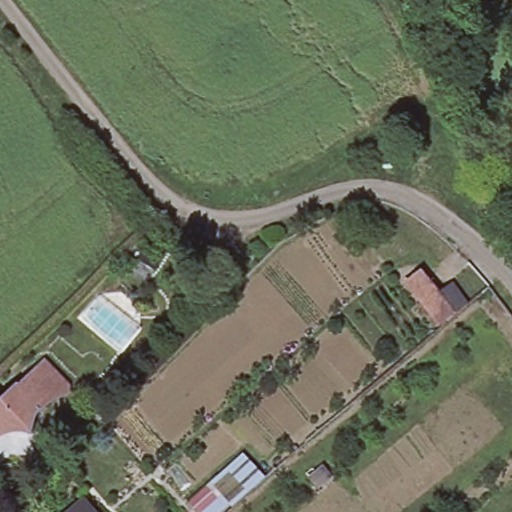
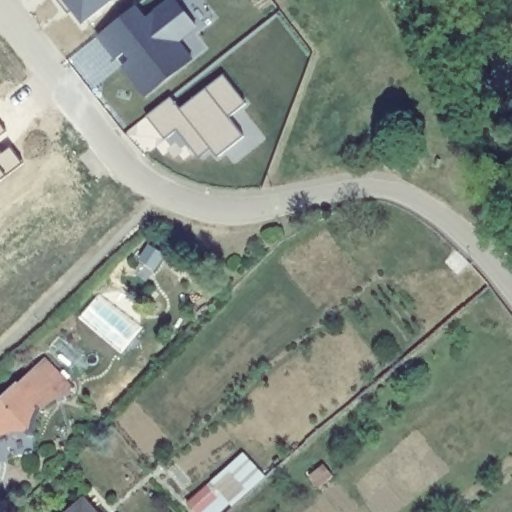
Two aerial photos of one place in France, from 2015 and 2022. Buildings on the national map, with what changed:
new [(84,24),(68,5),(64,8),(57,0),(115,0),(84,24)]
new [(135,6),(144,15),(165,0),(173,0),(195,26),(178,42),(193,59),(145,97),(121,68),(128,61),(122,52),(113,58),(96,37),(135,6)]
new [(171,97),(181,109),(224,75),(247,104),(230,118),(245,137),(218,158),(212,150),(204,156),(195,144),(191,147),(178,131),(166,140),(147,117),(171,97)]
new [(0,136),(0,124),(5,131),(0,136)]
new [(10,148),(21,163),(0,180),(0,150),(1,152),(10,148)]
unchanged [(45,351),(67,373),(68,382),(65,382),(61,382),(57,383),(54,384),(51,385),(47,387),(45,389),(42,391),(40,393),(37,396),(18,378),(45,351)]
unchanged [(18,378),(37,396),(36,399),(35,401),(33,404),(32,406),(32,409),(31,412),(31,415),(31,418),(32,421),(33,423),(29,422),(25,422),(21,422),(17,422),(13,422),(10,423),(5,423),(2,425),(0,426),(0,395),(17,377),(18,378)]
new [(227,512),(197,512),(190,504),(245,453),(267,478),(227,512)]
unchanged [(97,512),(69,512),(85,498),(97,512)]

